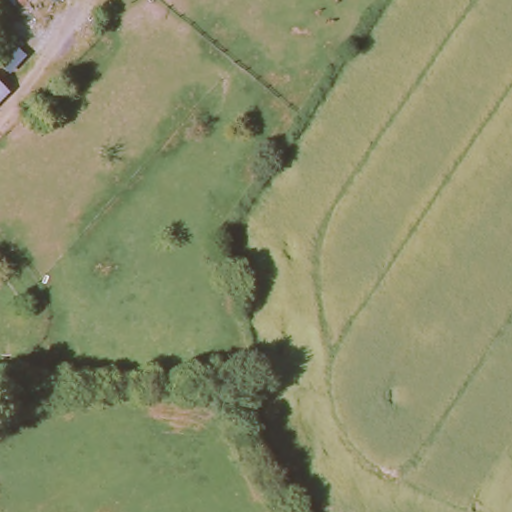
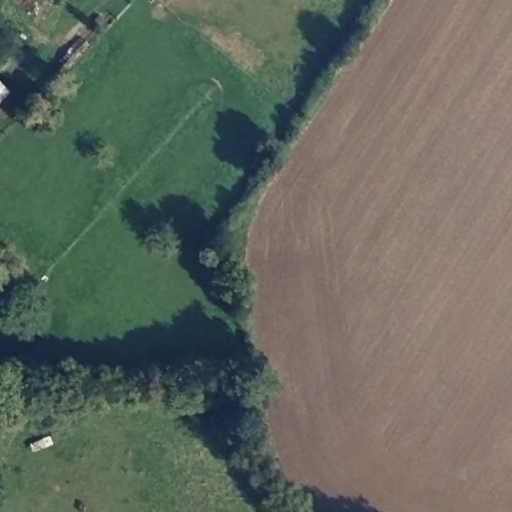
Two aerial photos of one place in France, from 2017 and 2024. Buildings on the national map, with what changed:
unchanged [(0,98),(0,75),(12,89),(0,98)]

